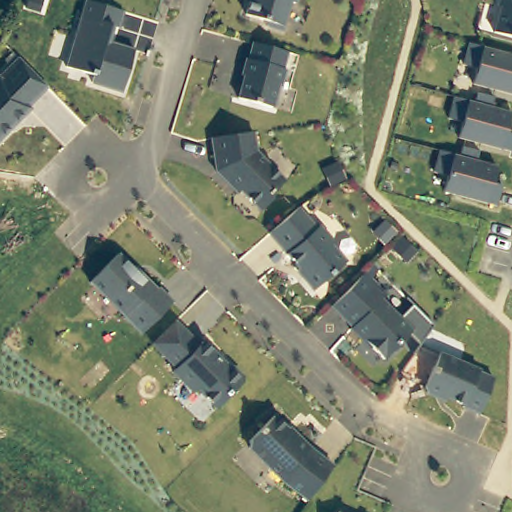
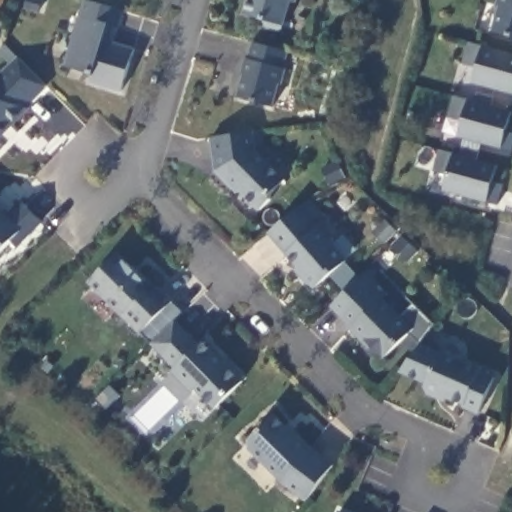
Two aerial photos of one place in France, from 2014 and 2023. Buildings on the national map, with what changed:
unchanged [(86,0),(94,0),(124,9),(120,26),(111,23),(106,38),(136,47),(124,89),(93,80),(95,73),(67,65),(86,0)]
unchanged [(283,27),(268,23),(264,17),(246,11),(250,0),(292,0),(283,27)]
unchanged [(498,3),(499,0),(512,0),(512,33),(495,28),(501,4),(498,3)]
unchanged [(282,48),(289,49),(285,66),(287,67),(283,83),(281,82),(275,105),(240,96),(246,73),(243,73),(247,57),(250,57),(254,40),(282,48)]
unchanged [(482,65),(468,62),(474,40),(512,50),(512,90),(478,81),(482,65)]
unchanged [(21,56),(29,65),(48,84),(26,105),(28,107),(0,134),(0,77),(21,56)]
unchanged [(507,146),(464,135),(468,119),(454,115),(459,94),(512,108),(512,129),(512,147),(507,145),(507,146)]
unchanged [(214,135),(256,130),(259,149),(288,178),(275,191),(275,197),(264,208),(234,179),(232,181),(219,169),(214,135)]
unchanged [(493,200),(449,188),(453,173),(439,169),(445,147),(502,162),(498,179),(508,182),(503,202),(493,200)]
new [(44,223),(20,247),(12,240),(0,253),(0,205),(11,215),(22,203),(44,223)]
unchanged [(316,223),(319,220),(332,234),(331,240),(346,256),(314,285),(303,273),(305,270),(268,230),(297,203),(316,223)]
unchanged [(120,253),(158,288),(161,287),(173,301),(141,333),(89,281),(120,253)]
unchanged [(389,354),(369,334),(368,336),(355,324),(357,322),(346,312),(380,277),(392,289),(387,294),(417,324),(389,354)]
unchanged [(201,386),(198,389),(177,368),(180,365),(168,352),(156,341),(178,317),(190,329),(203,341),(206,338),(226,357),(223,359),(229,365),(231,362),(237,362),(247,372),(247,378),(221,404),(201,386)]
unchanged [(469,399),(446,389),(440,391),(432,388),(430,382),(445,346),(485,364),(484,365),(499,372),(484,408),(468,401),(469,399)]
unchanged [(340,462),(314,497),(290,478),(256,444),(256,437),(281,412),(302,432),(304,431),(318,445),(340,462)]
unchanged [(343,512),(344,507),(355,512),(343,512)]

